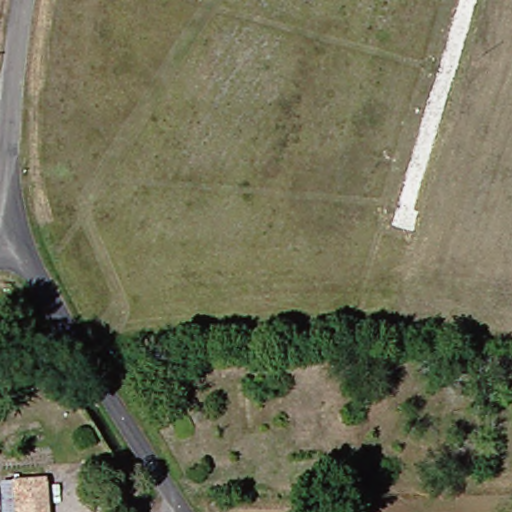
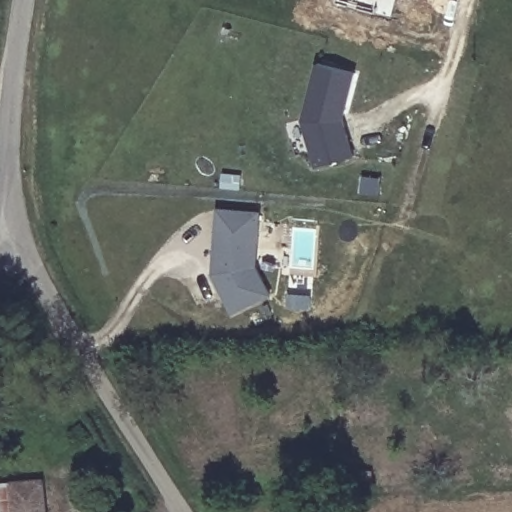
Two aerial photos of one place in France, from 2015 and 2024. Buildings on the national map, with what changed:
new [(337,1),(338,0),(378,0),(375,11),(337,1)]
new [(301,114),(313,66),(353,75),(342,119),(352,156),(315,166),(301,114)]
new [(215,207),(257,211),(251,266),(265,295),(227,313),(209,274),(215,207)]
unchanged [(53,481),(56,512),(24,512),(21,483),(53,481)]

